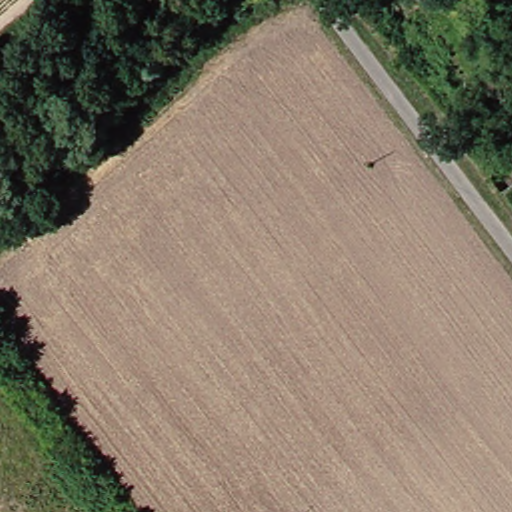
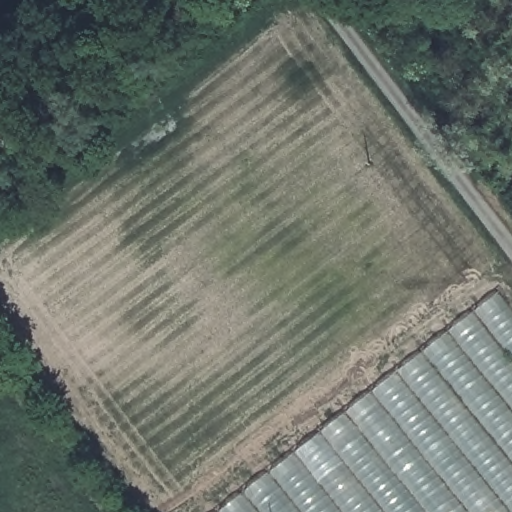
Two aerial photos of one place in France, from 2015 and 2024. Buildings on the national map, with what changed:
new [(512,313),(512,512),(217,512),(497,294),(512,313)]

